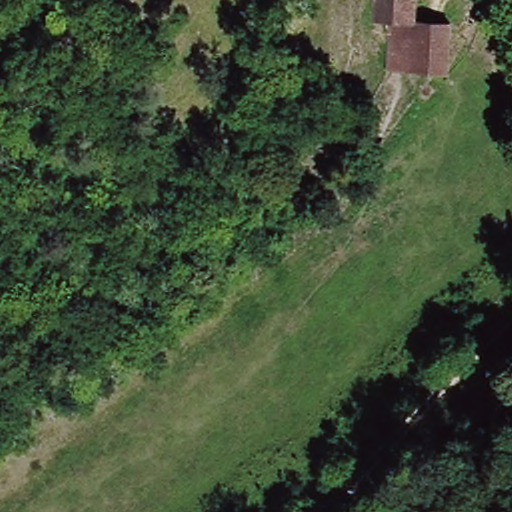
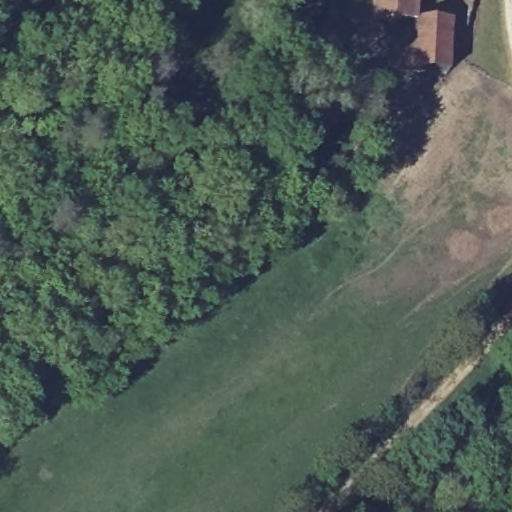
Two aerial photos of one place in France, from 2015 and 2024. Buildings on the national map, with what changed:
unchanged [(411,22),(446,24),(443,75),(441,76),(436,77),(435,79),(387,74),(388,25),(368,24),(369,0),(412,0),(411,22)]

